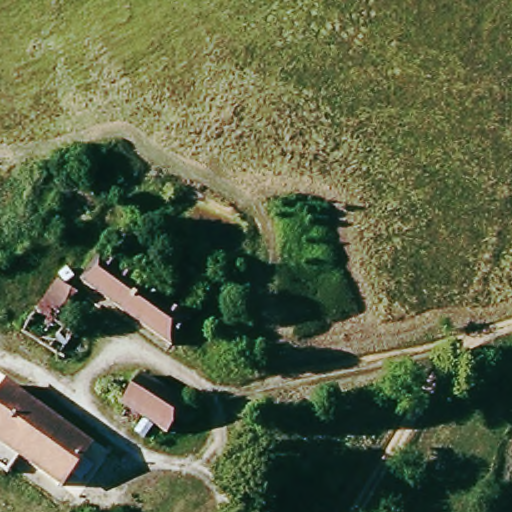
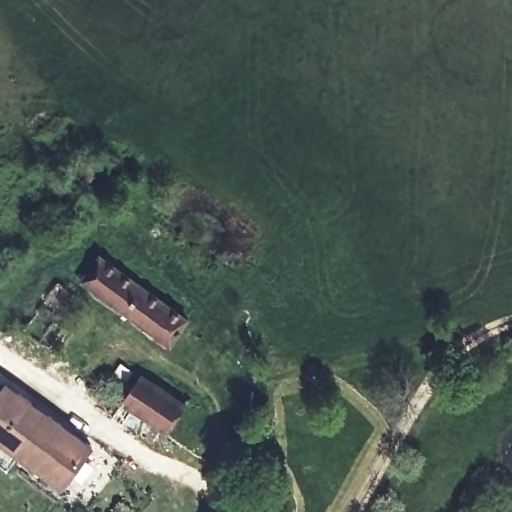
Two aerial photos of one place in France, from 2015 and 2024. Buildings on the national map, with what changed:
unchanged [(170,341),(82,275),(100,253),(186,318),(170,341)]
unchanged [(54,313),(74,327),(56,353),(20,327),(55,277),(71,289),(54,313)]
unchanged [(190,397),(172,424),(125,397),(145,368),(190,397)]
unchanged [(65,478),(22,446),(10,461),(0,453),(0,388),(7,377),(94,441),(65,478)]

